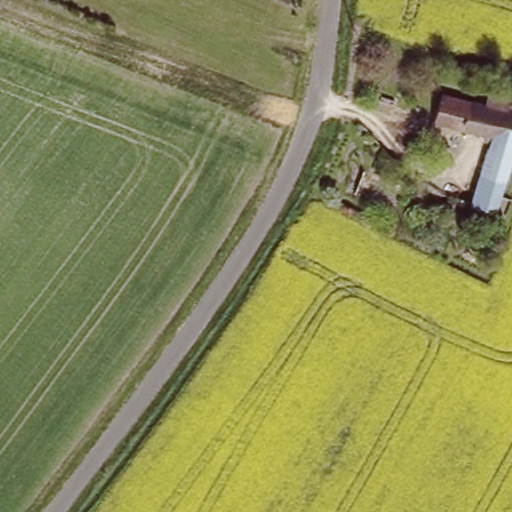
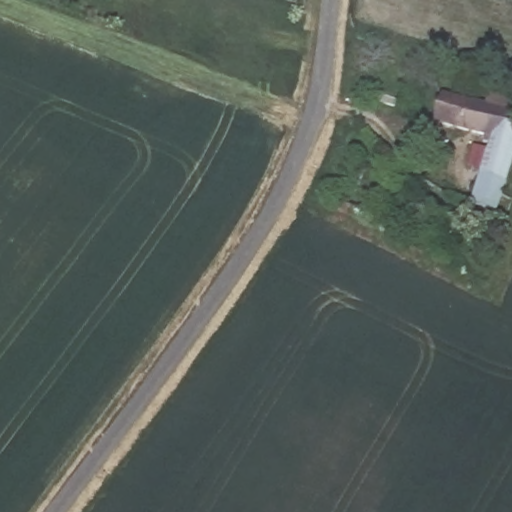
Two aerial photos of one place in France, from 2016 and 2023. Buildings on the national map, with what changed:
unchanged [(500,213),(499,212),(492,224),(467,212),(489,137),(436,122),(442,97),(484,109),(487,99),(512,106),(512,110),(510,116),(512,116),(512,175),(500,213)]

